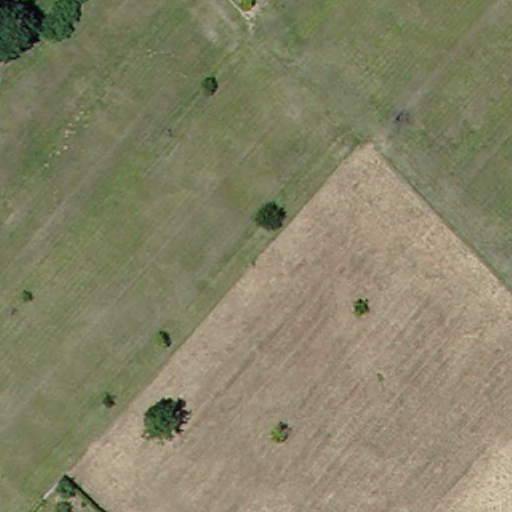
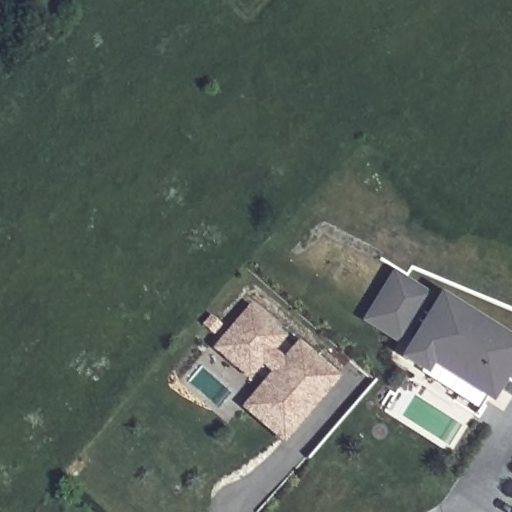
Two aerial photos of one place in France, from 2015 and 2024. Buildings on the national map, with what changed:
new [(392,279),(420,297),(412,310),(424,317),(436,299),(453,310),(452,310),(509,345),(512,341),(512,395),(503,390),(506,385),(493,375),(480,395),(422,358),(416,368),(399,357),(419,326),(407,318),(401,326),(373,308),(392,279)]
new [(279,445),(238,407),(266,373),(260,367),(246,381),(210,348),(249,305),(284,336),(273,350),(281,357),(297,340),(338,377),(279,445)]

